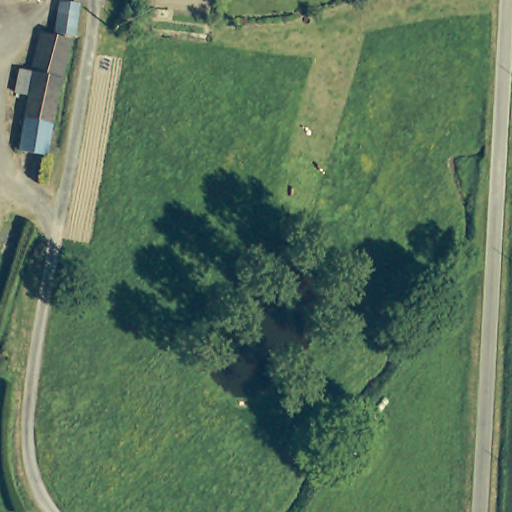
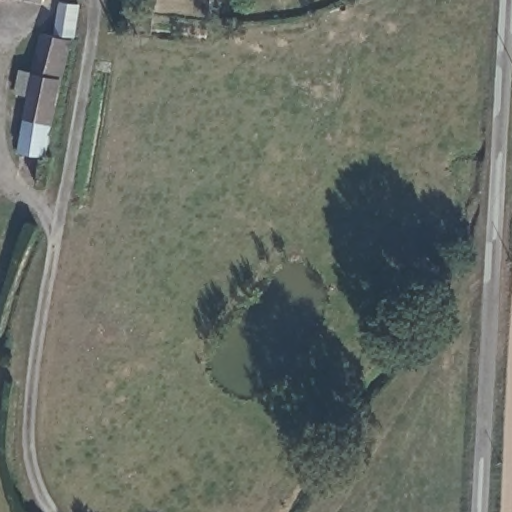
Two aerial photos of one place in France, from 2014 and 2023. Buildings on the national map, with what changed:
unchanged [(34,0),(44,0),(44,1),(34,0)]
unchanged [(84,10),(79,40),(57,34),(64,29),(66,8),(84,10)]
unchanged [(39,79),(49,41),(77,50),(67,86),(39,79)]
unchanged [(32,78),(39,79),(67,86),(56,149),(28,144),(35,103),(20,98),(24,76),(32,78)]

